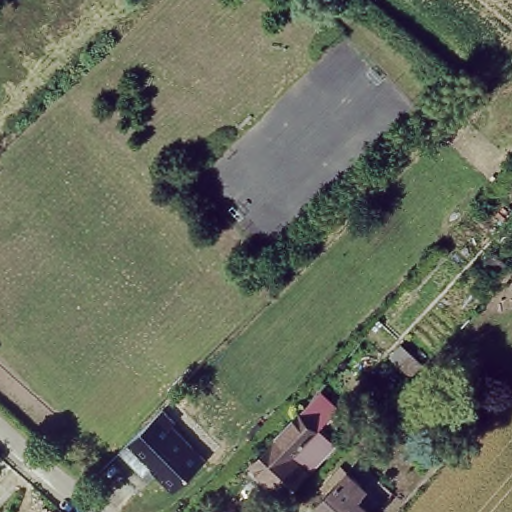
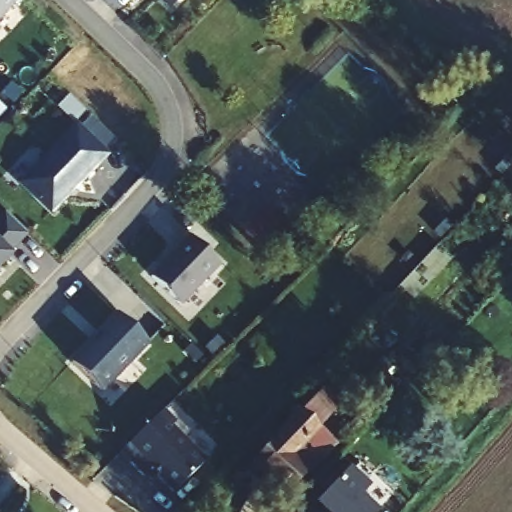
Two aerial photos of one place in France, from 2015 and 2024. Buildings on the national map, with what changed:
new [(19,1),(0,19),(0,0),(18,0),(19,1)]
new [(172,9),(162,0),(181,0),(172,9)]
new [(107,155),(50,215),(17,184),(75,124),(107,155)]
new [(5,214),(25,234),(12,247),(14,249),(0,262),(0,218),(5,214)]
new [(220,266),(180,307),(149,277),(189,235),(220,266)]
new [(69,362),(113,312),(149,344),(102,394),(69,362)]
unchanged [(340,442),(290,500),(250,462),(300,407),(340,442)]
unchanged [(210,457),(175,494),(127,447),(162,410),(210,457)]
unchanged [(361,483),(352,495),(370,512),(330,512),(314,497),(344,465),(361,483)]

